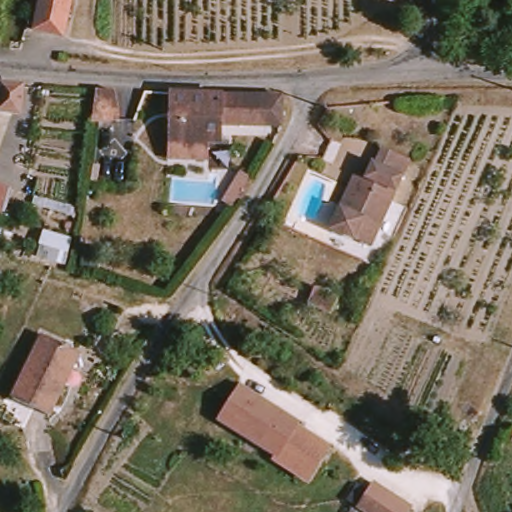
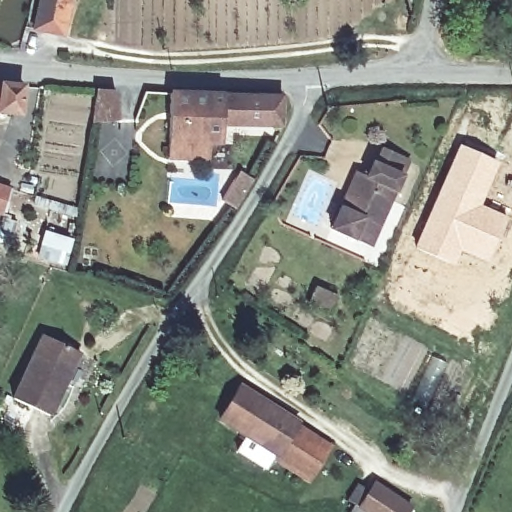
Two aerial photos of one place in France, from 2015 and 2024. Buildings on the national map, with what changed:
unchanged [(36,30),(42,0),(71,0),(65,35),(36,30)]
unchanged [(21,118),(0,117),(0,88),(24,91),(21,118)]
unchanged [(116,90),(120,121),(92,123),(97,90),(116,90)]
unchanged [(234,99),(282,102),(281,130),(224,130),(222,150),(210,149),(209,164),(170,163),(171,97),(234,99)]
new [(458,142),(500,161),(481,204),(506,215),(486,262),(460,249),(452,264),(412,246),(458,142)]
unchanged [(352,240),(330,230),(355,173),(365,178),(371,164),(375,165),(381,151),(407,162),(400,177),(373,239),(369,248),(352,240)]
unchanged [(235,210),(224,204),(241,174),(252,180),(235,210)]
unchanged [(0,213),(0,187),(7,189),(1,213),(0,213)]
unchanged [(75,217),(33,205),(35,197),(76,208),(75,217)]
unchanged [(66,266),(37,258),(45,232),(71,240),(66,266)]
unchanged [(330,318),(308,309),(315,293),(337,302),(330,318)]
unchanged [(12,398),(42,336),(72,350),(79,354),(66,380),(49,416),(12,398)]
unchanged [(295,426),(327,447),(306,481),(271,458),(273,454),(219,419),(235,392),(240,386),(267,404),(296,423),(295,426)]
unchanged [(397,504),(407,512),(356,512),(347,506),(357,491),(368,498),(375,489),(397,504)]

